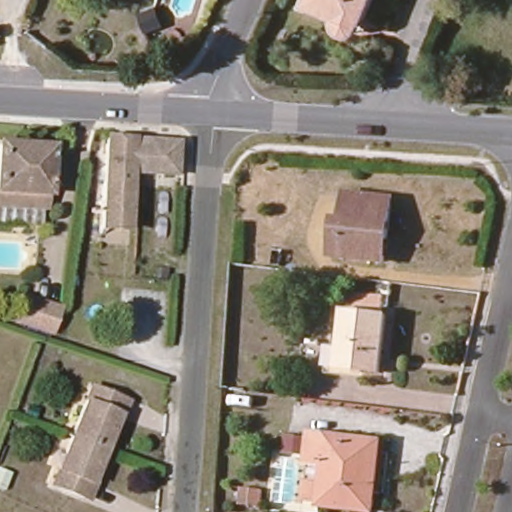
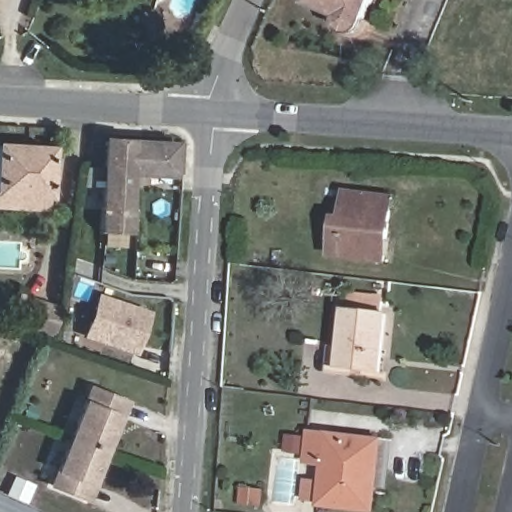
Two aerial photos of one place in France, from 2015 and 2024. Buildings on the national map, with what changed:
unchanged [(335,34),(333,23),(302,9),(306,0),(373,0),(362,24),(360,24),(356,35),(343,42),(335,34)]
unchanged [(157,48),(145,32),(158,21),(170,36),(157,48)]
unchanged [(0,192),(0,132),(49,133),(45,194),(0,192)]
unchanged [(175,178),(136,179),(129,236),(89,234),(92,197),(105,197),(110,138),(177,141),(175,178)]
unchanged [(0,214),(0,192),(45,194),(43,216),(0,214)]
unchanged [(343,221),(346,196),(388,199),(381,262),(332,255),(335,220),(343,221)]
unchanged [(381,377),(321,372),(323,344),(337,346),(346,291),(378,295),(377,311),(387,314),(381,377)]
unchanged [(45,327),(18,319),(11,317),(19,293),(26,295),(52,304),(45,327)]
new [(99,296),(147,313),(135,351),(86,334),(99,296)]
unchanged [(87,390),(121,403),(106,449),(71,437),(87,390)]
unchanged [(106,449),(90,497),(56,484),(71,437),(106,449)]
unchanged [(370,512),(345,512),(320,509),(325,468),(301,465),(305,439),(377,447),(370,512)]

